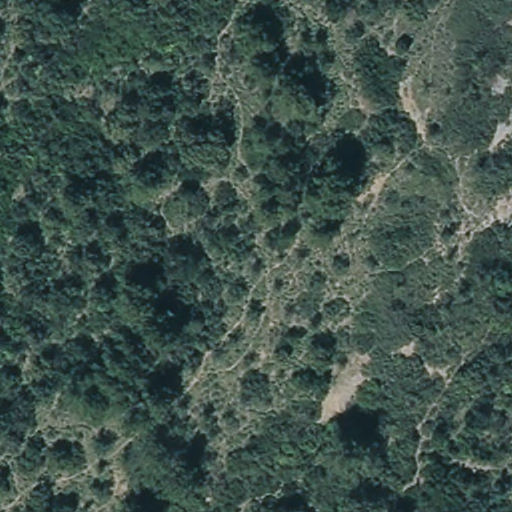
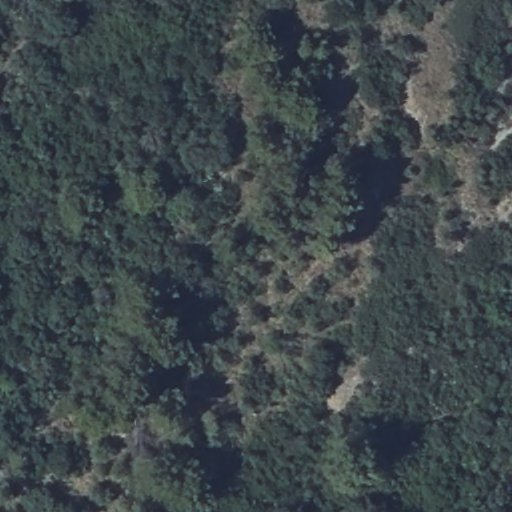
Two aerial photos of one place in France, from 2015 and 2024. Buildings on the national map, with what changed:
[]

